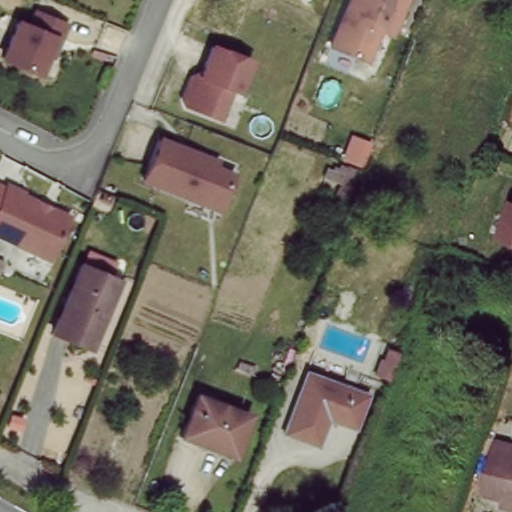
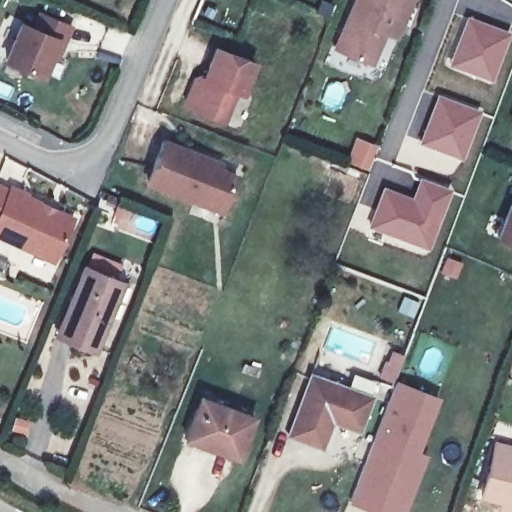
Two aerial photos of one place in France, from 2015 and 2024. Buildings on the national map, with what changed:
unchanged [(375,64),(337,48),(358,0),(414,0),(404,25),(398,39),(387,34),(375,64)]
unchanged [(60,57),(54,56),(43,76),(5,60),(22,22),(31,25),(37,9),(73,26),(60,57)]
new [(467,14),(510,32),(492,81),(448,65),(467,14)]
unchanged [(250,97),(238,93),(225,124),(185,108),(208,43),(263,65),(250,97)]
new [(437,93),(481,109),(462,159),(418,143),(437,93)]
new [(355,135),(379,144),(368,171),(346,162),(355,135)]
unchanged [(223,214),(150,185),(165,141),(223,160),(240,176),(223,214)]
new [(382,185),(411,194),(420,175),(452,188),(428,251),(367,228),(382,185)]
unchanged [(0,235),(0,212),(12,186),(77,218),(56,261),(0,235)]
unchanged [(501,240),(512,216),(512,245),(501,240)]
unchanged [(123,280),(95,348),(57,332),(86,264),(123,280)]
unchanged [(360,431),(333,421),(323,448),(291,436),(313,376),(372,398),(360,431)]
new [(420,452),(429,455),(407,512),(370,512),(350,504),(396,380),(441,397),(420,452)]
unchanged [(257,414),(240,456),(187,435),(202,393),(257,414)]
unchanged [(501,500),(481,495),(495,443),(512,447),(512,511),(499,507),(501,500)]

